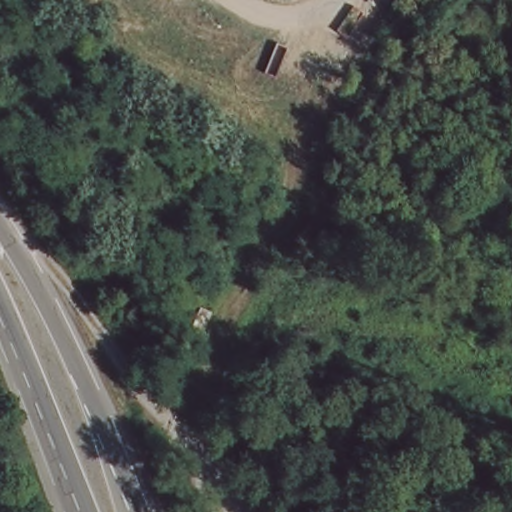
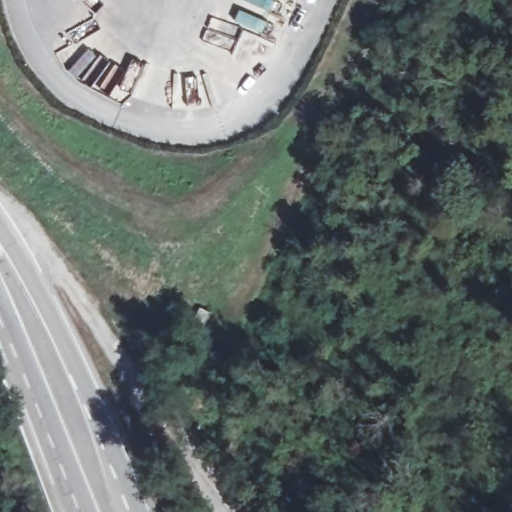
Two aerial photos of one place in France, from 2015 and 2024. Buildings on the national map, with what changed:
unchanged [(213,323),(210,331),(207,339),(197,335),(204,319),(213,323)]

